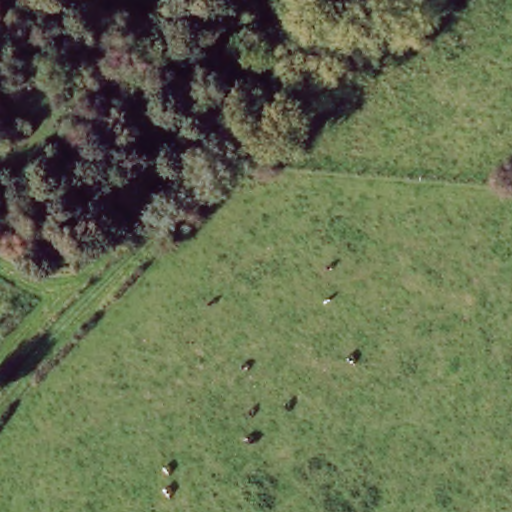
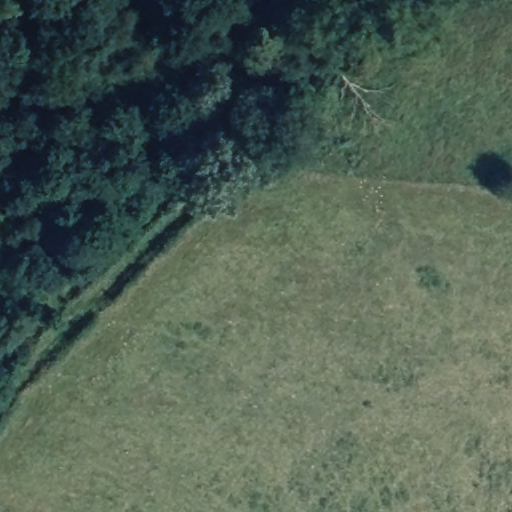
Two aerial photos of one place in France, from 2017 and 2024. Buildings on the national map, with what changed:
unchanged [(36,198),(49,186),(68,204),(36,229),(1,195),(18,181),(36,198)]

